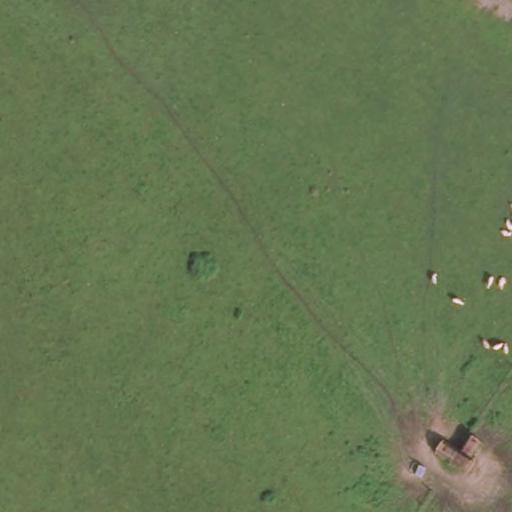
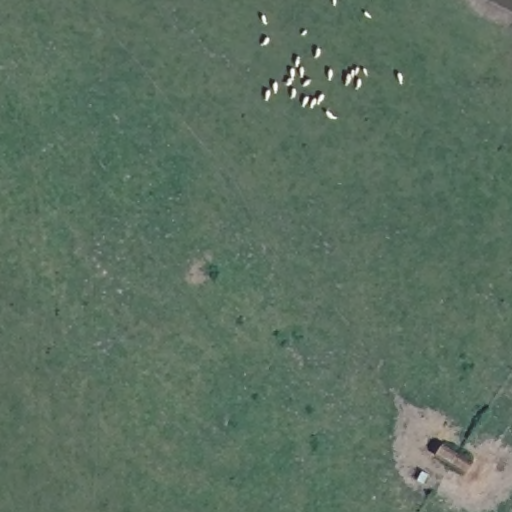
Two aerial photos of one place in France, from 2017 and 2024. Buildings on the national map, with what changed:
unchanged [(469,459),(472,462),(464,476),(430,458),(440,442),(457,450),(465,438),(479,445),(469,459)]

